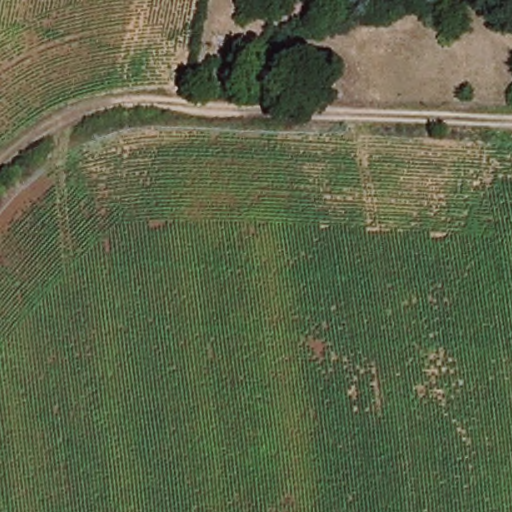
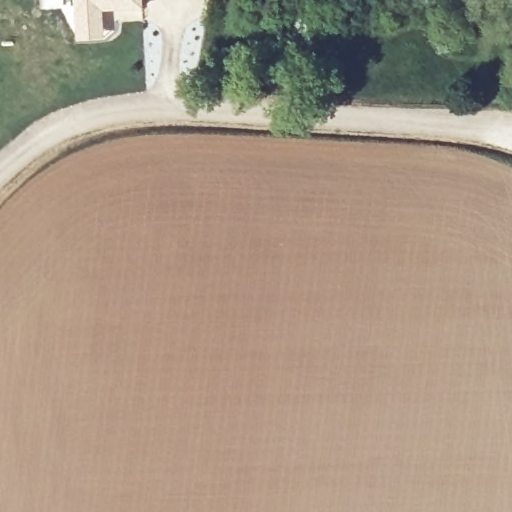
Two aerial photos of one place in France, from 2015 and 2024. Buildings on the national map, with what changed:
new [(103,12),(104,39),(79,41),(76,0),(142,0),(143,9),(103,12)]

